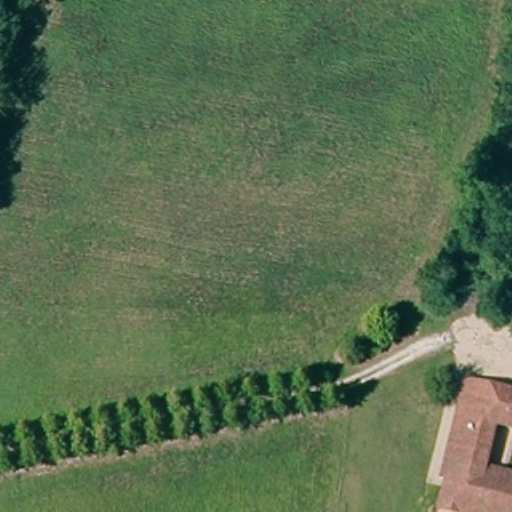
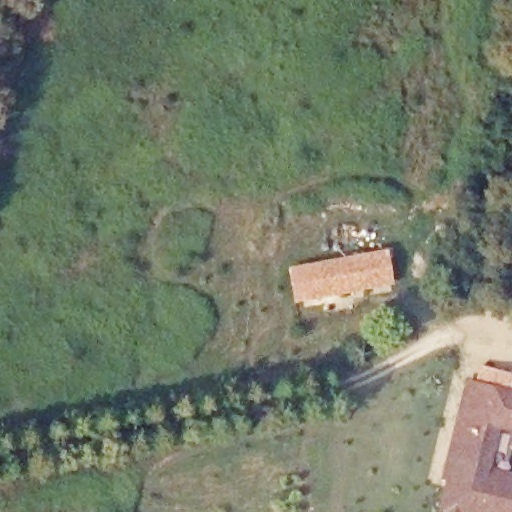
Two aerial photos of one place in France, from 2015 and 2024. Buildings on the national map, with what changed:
new [(307,301),(301,266),(387,250),(393,284),(307,301)]
unchanged [(473,374),(512,383),(512,420),(499,417),(488,464),(512,470),(512,512),(457,512),(439,508),(473,374)]

